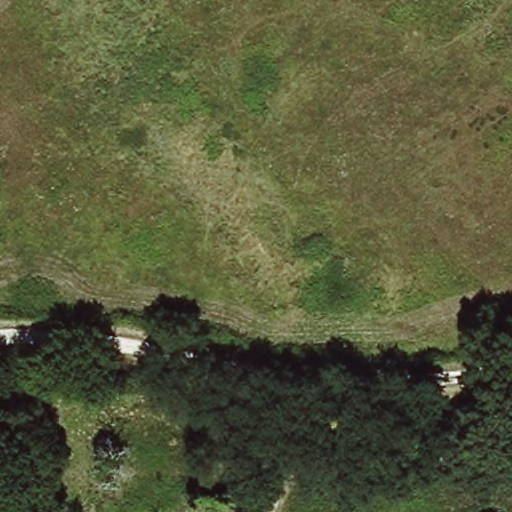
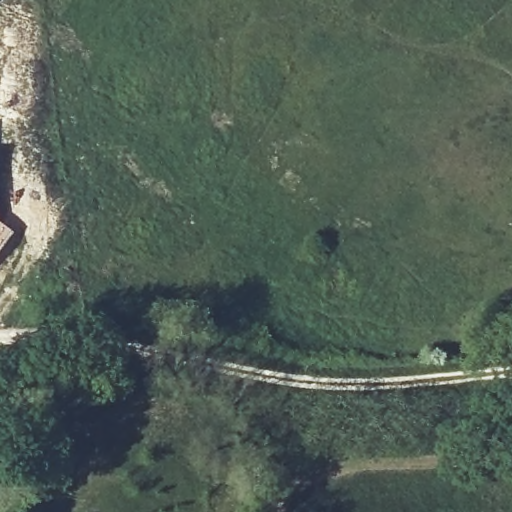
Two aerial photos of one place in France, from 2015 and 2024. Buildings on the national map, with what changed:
new [(11,233),(0,249),(0,224),(11,233)]

